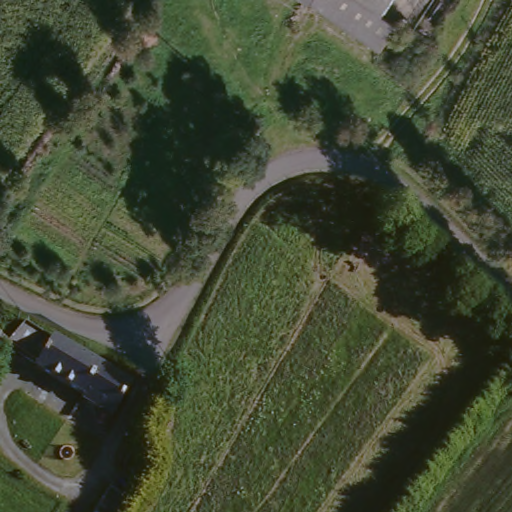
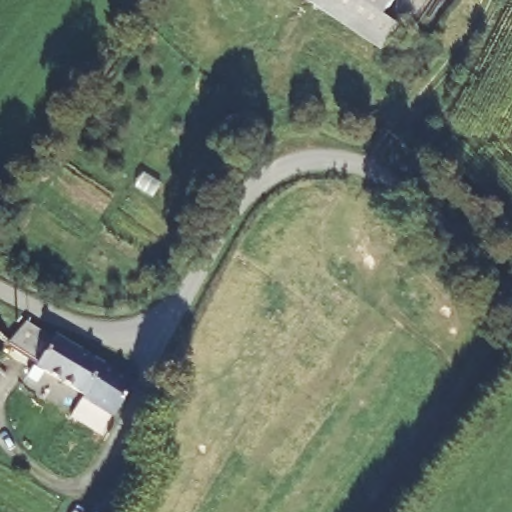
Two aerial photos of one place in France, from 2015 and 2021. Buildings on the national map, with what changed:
unchanged [(315,5),(318,0),(364,0),(394,0),(385,13),(403,25),(384,52),(315,5)]
unchanged [(9,340),(26,320),(54,336),(55,335),(117,372),(132,381),(116,414),(5,345),(9,340)]

